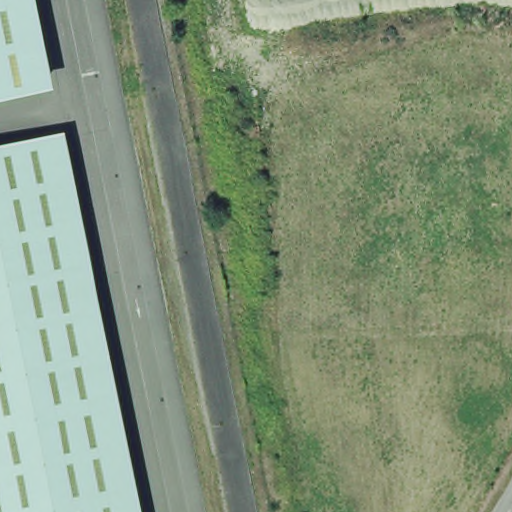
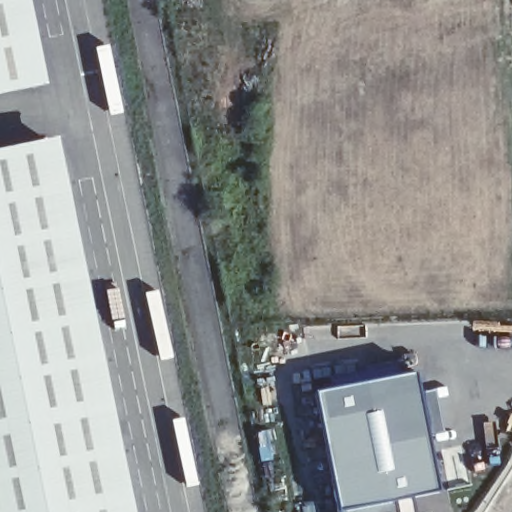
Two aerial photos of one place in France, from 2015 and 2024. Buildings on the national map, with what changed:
unchanged [(28,0),(45,81),(0,91),(0,0),(28,0)]
unchanged [(95,383),(56,391),(7,146),(46,139),(95,383)]
unchanged [(0,402),(0,148),(7,146),(56,391),(0,402)]
new [(416,375),(434,493),(396,499),(398,512),(337,512),(315,393),(416,375)]
unchanged [(56,391),(95,383),(126,512),(0,512),(0,402),(56,391)]

